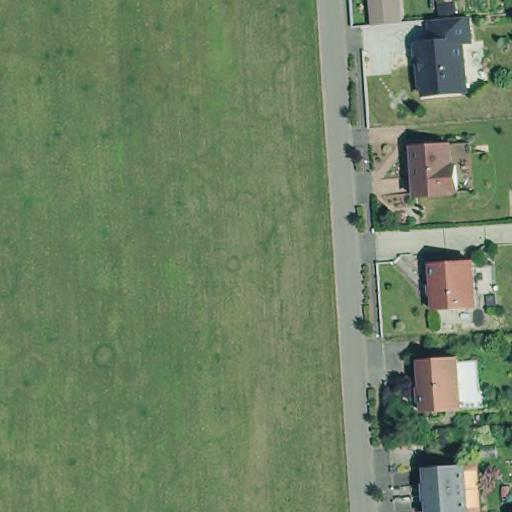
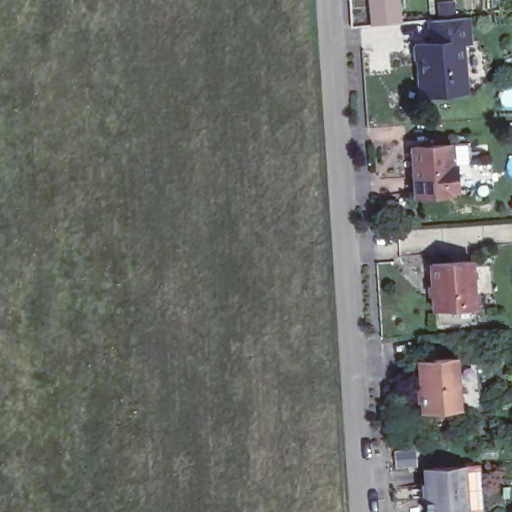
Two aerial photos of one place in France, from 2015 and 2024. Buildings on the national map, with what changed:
unchanged [(370,22),(368,0),(397,0),(398,20),(370,22)]
unchanged [(467,12),(469,11),(472,35),(463,36),(468,84),(425,88),(425,85),(422,80),(421,70),(423,65),(422,52),(420,53),(418,39),(426,38),(433,37),(432,15),(432,14),(439,14),(467,12)]
unchanged [(429,144),(432,147),(438,147),(438,144),(456,142),(457,164),(462,163),(464,189),(460,189),(460,192),(422,195),(419,145),(429,144)]
unchanged [(474,259),(477,305),(437,308),(433,262),(474,259)]
unchanged [(464,356),(468,407),(430,410),(426,358),(464,356)]
unchanged [(453,512),(420,512),(417,466),(457,463),(472,462),(475,511),(460,512),(453,512)]

